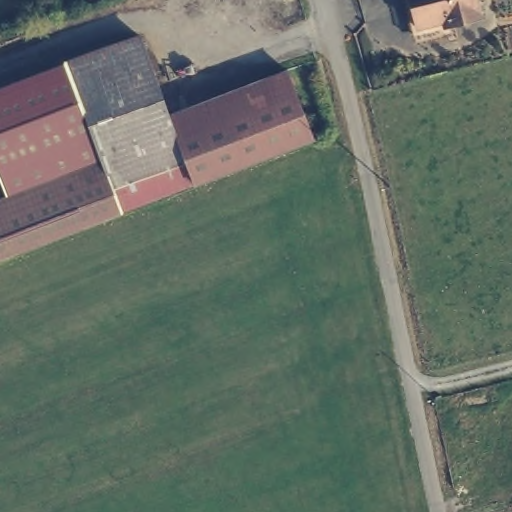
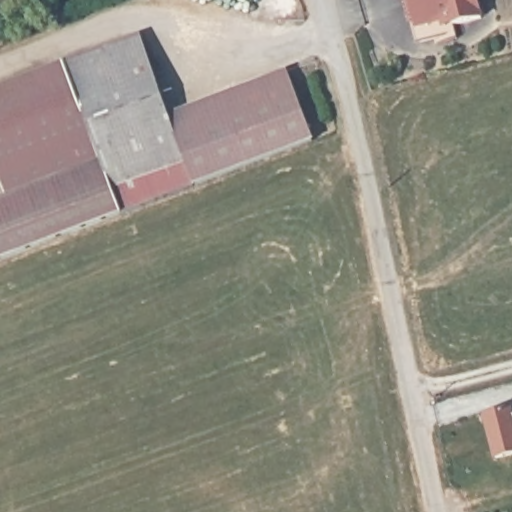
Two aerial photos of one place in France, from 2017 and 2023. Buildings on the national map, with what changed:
unchanged [(482,14),(454,25),(452,19),(418,26),(410,0),(478,0),(482,14)]
unchanged [(124,214),(124,212),(104,156),(70,62),(140,35),(168,110),(287,65),(313,137),(124,214)]
unchanged [(0,178),(0,89),(70,62),(104,156),(7,195),(0,178)]
unchanged [(0,261),(0,198),(104,156),(124,212),(0,261)]
new [(482,415),(511,408),(512,412),(512,455),(494,460),(482,415)]

